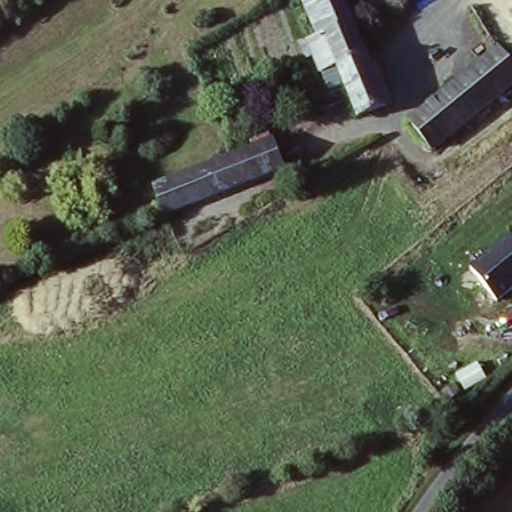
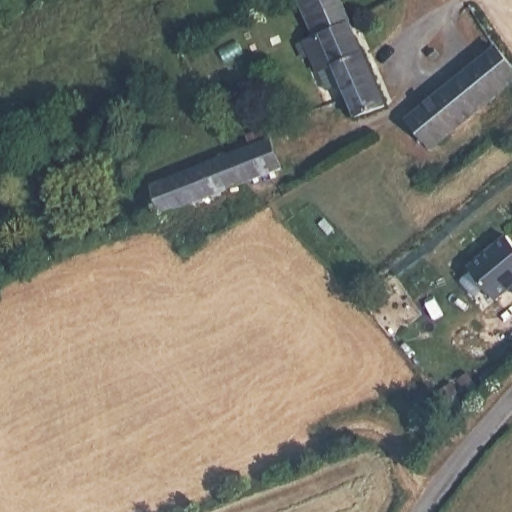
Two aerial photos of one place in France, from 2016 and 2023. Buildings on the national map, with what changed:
unchanged [(312,4),(311,0),(347,0),(355,24),(328,40),(312,4)]
unchanged [(391,109),(362,121),(356,111),(340,72),(330,74),(317,44),(328,40),(355,24),(391,109)]
unchanged [(496,46),(512,63),(512,82),(429,148),(406,118),(496,46)]
unchanged [(152,184),(228,154),(251,145),(247,136),(267,129),(272,140),(282,165),(163,211),(152,184)]
unchanged [(512,240),(512,292),(497,304),(470,269),(509,237),(512,240)]

